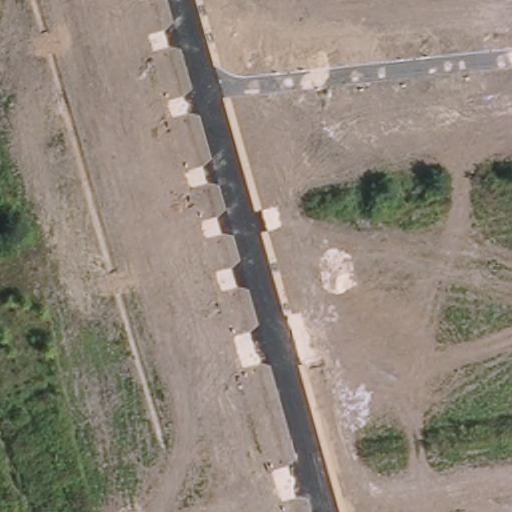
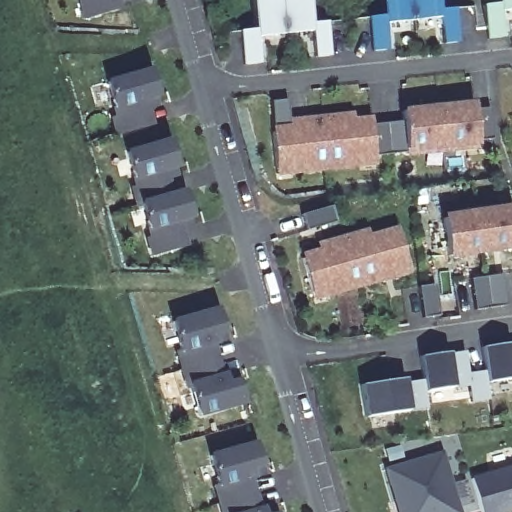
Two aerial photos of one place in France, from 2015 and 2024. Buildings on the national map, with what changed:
new [(82,18),(78,1),(81,0),(117,0),(119,7),(82,18)]
unchanged [(326,21),(330,56),(315,56),(312,31),(257,38),(259,63),(243,65),(240,31),(256,30),(252,0),(309,0),(312,23),(326,21)]
unchanged [(456,9),(458,41),(442,43),(440,18),(385,23),(387,49),(372,51),(370,19),(384,16),(382,0),(438,0),(439,10),(456,9)]
unchanged [(503,37),(488,39),(484,5),(498,3),(498,0),(512,0),(512,9),(501,10),(503,37)]
new [(159,98),(161,106),(150,108),(154,124),(116,135),(112,118),(115,116),(115,110),(107,79),(148,68),(159,98)]
new [(290,100),(291,118),(354,111),(354,117),(373,116),(374,123),(403,119),(402,108),(475,100),(479,148),(410,155),(409,151),(377,156),(378,164),(279,175),(271,101),(290,100)]
new [(176,166),(180,176),(170,178),(174,190),(182,188),(191,218),(193,226),(182,229),(186,246),(151,256),(146,238),(150,237),(149,231),(141,199),(136,204),(132,191),(135,189),(135,182),(126,151),(168,138),(176,166)]
new [(442,216),(512,205),(512,249),(448,260),(442,216)]
new [(335,208),(340,224),(309,233),(305,217),(335,208)]
new [(410,273),(314,301),(301,253),(317,248),(316,242),(368,229),(369,234),(397,226),(410,273)]
new [(507,275),(512,305),(496,308),(479,310),(475,279),(491,277),(507,275)]
new [(440,284),(444,316),(428,318),(423,287),(440,284)]
new [(198,417),(171,319),(219,306),(229,341),(218,345),(228,381),(237,379),(245,402),(198,417)]
new [(405,380),(406,382),(423,379),(420,356),(450,353),(466,351),(468,374),(485,370),(482,348),(511,344),(512,343),(512,378),(487,382),(488,399),(471,402),(469,386),(455,386),(425,392),(427,407),(410,410),(366,417),(361,386),(405,380)]
new [(208,455),(255,441),(266,474),(255,479),(266,512),(224,512),(208,455)]
new [(393,483),(388,466),(443,451),(461,512),(401,512),(393,483)]
new [(505,512),(483,512),(473,478),(512,466),(512,510),(505,512)]

